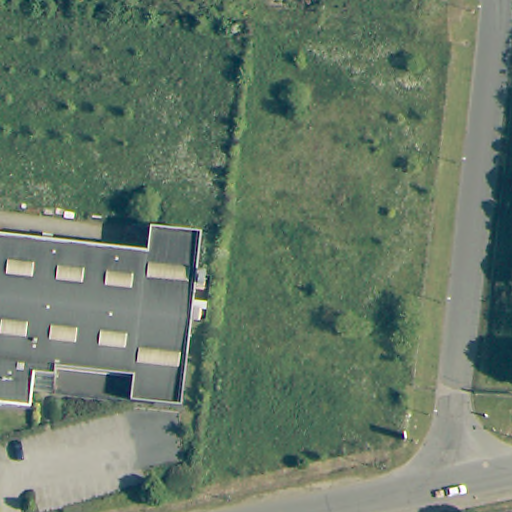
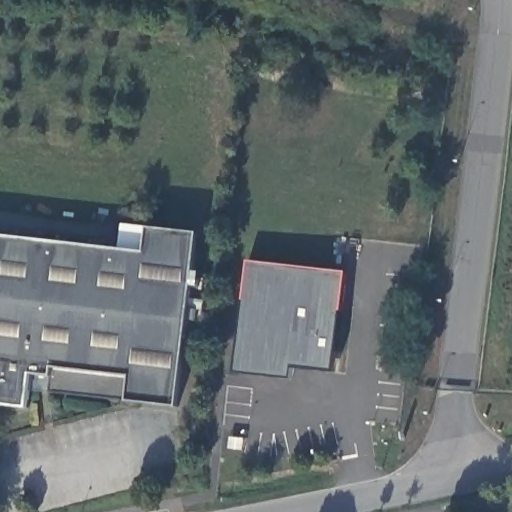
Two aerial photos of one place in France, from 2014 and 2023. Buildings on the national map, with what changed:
unchanged [(49,394),(51,377),(31,375),(27,410),(0,407),(0,237),(144,254),(147,229),(199,236),(194,277),(209,278),(204,323),(188,322),(178,409),(49,394)]
new [(335,375),(294,368),(292,380),(236,373),(248,261),(346,273),(335,375)]

